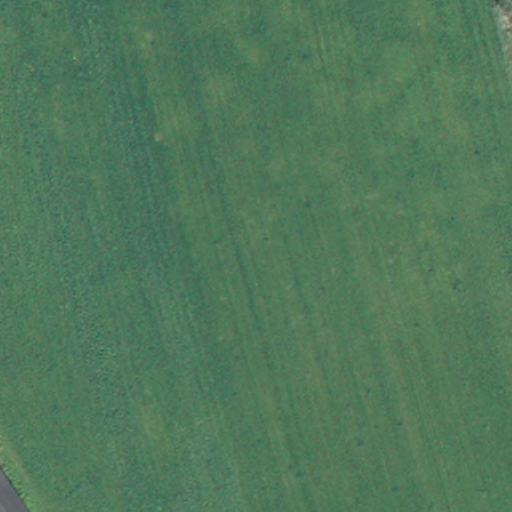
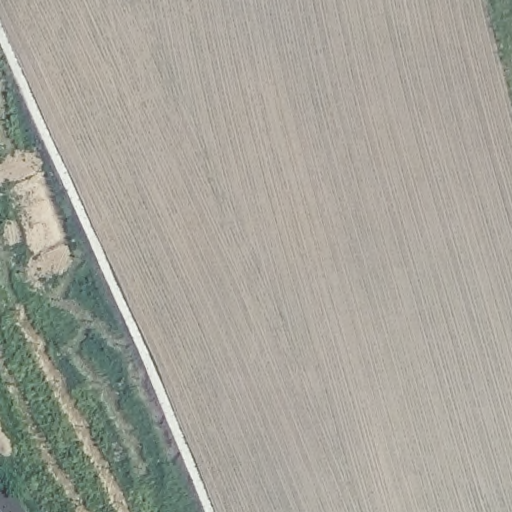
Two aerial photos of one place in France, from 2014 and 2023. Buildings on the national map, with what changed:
unchanged [(28,512),(0,512),(0,473),(28,512)]

